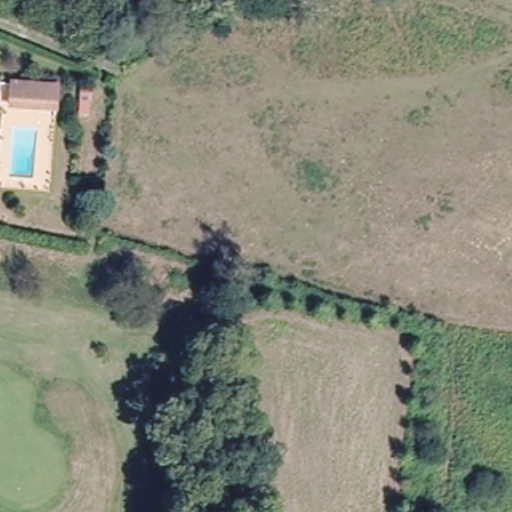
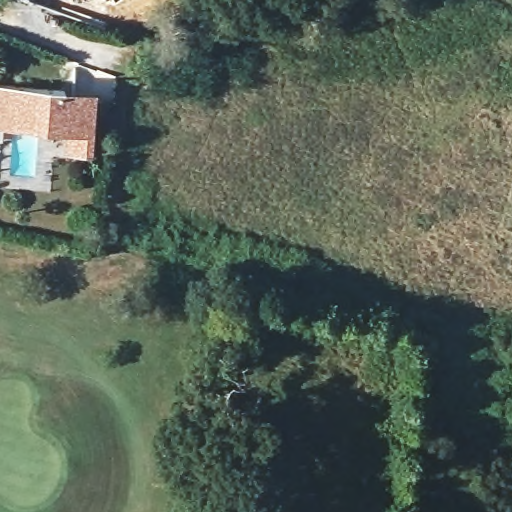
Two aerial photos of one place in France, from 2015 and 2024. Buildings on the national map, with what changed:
new [(63,154),(64,132),(0,126),(0,86),(95,93),(90,156),(63,154)]

